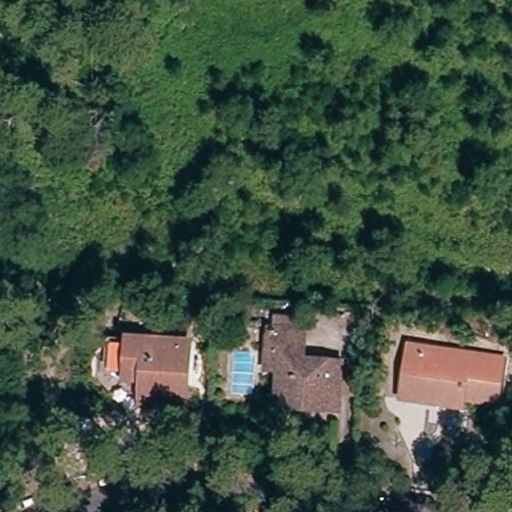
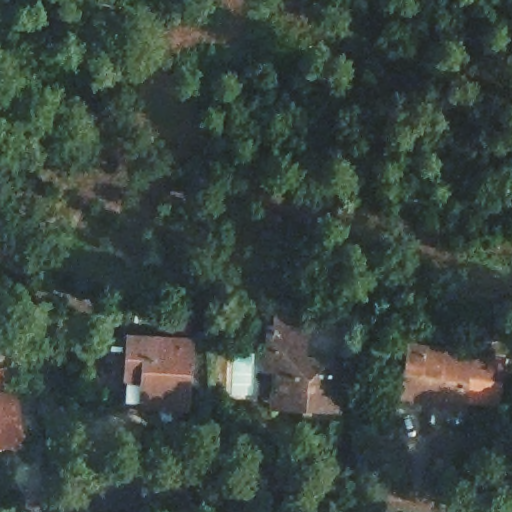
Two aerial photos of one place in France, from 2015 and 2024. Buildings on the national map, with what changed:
unchanged [(275,403),(283,403),(284,370),(272,369),(273,353),(274,333),(306,334),(305,362),(340,364),(343,367),(341,411),(325,410),(275,408),(275,403)]
unchanged [(128,339),(187,343),(183,407),(142,404),(142,401),(124,400),(128,339)]
unchanged [(416,398),(396,395),(404,342),(421,344),(420,351),(430,353),(435,359),(450,349),(496,356),(489,401),(433,392),(432,401),(416,398)]
new [(2,389),(0,389),(0,376),(2,389)]
new [(2,389),(17,386),(26,447),(0,451),(0,389),(2,389)]

